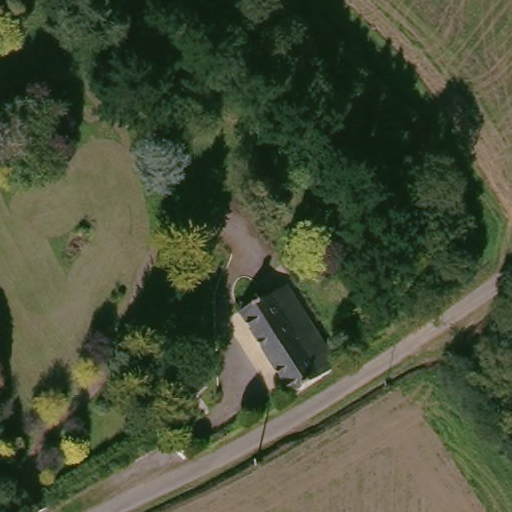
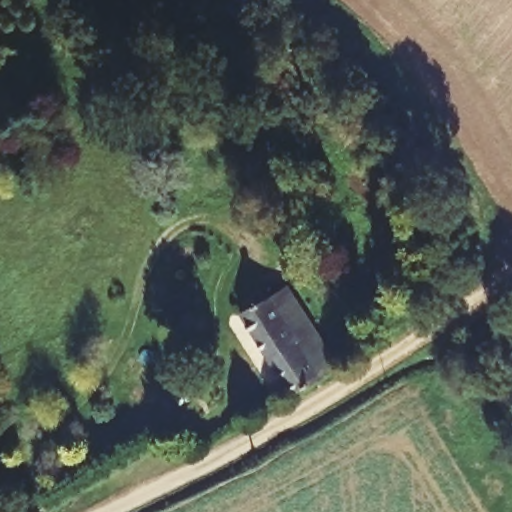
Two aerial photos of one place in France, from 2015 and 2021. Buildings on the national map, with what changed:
unchanged [(240,313),(286,286),(339,366),(292,398),(240,313)]
unchanged [(173,393),(198,375),(202,381),(217,372),(233,396),(219,407),(206,387),(183,402),(173,393)]

